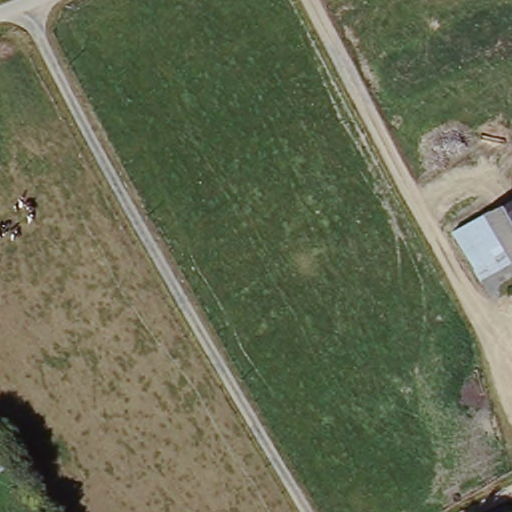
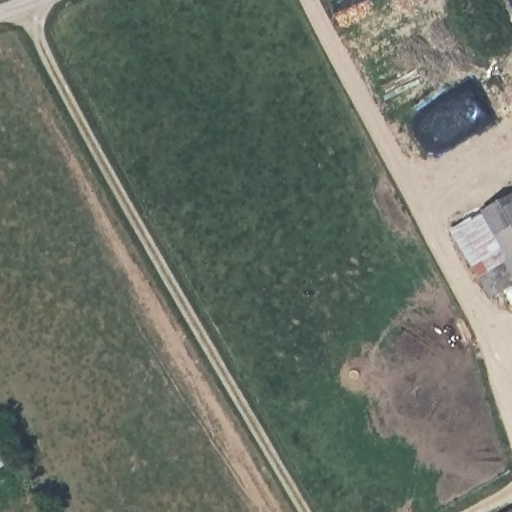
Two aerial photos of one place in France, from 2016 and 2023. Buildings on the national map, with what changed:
unchanged [(512,255),(490,218),(512,207),(512,255)]
unchanged [(490,218),(512,255),(512,266),(488,279),(462,234),(490,218)]
unchanged [(512,295),(501,301),(488,279),(512,266),(512,295)]

